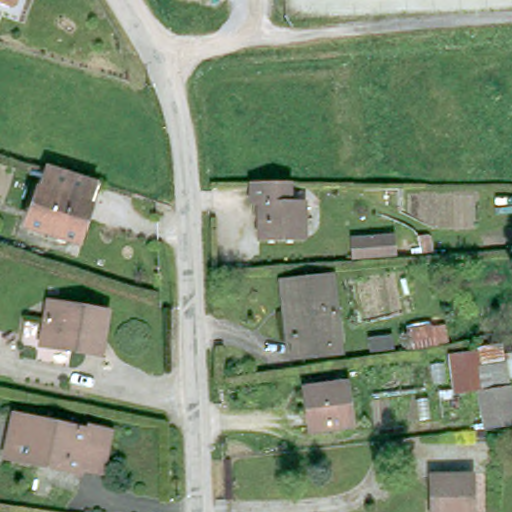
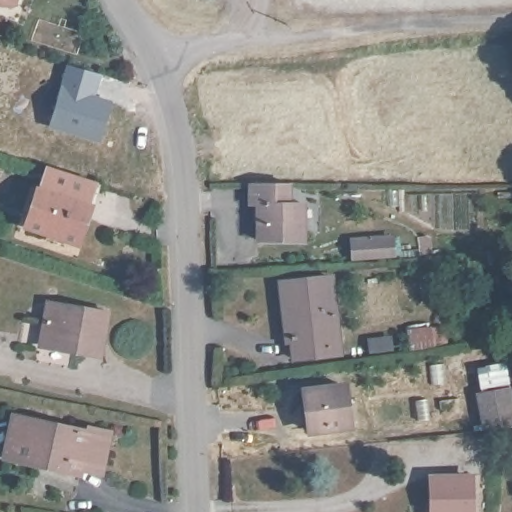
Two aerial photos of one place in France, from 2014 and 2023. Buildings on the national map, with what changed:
unchanged [(15,4),(10,7),(0,4),(0,0),(16,0),(15,4)]
new [(99,140),(50,125),(69,63),(98,73),(92,96),(110,101),(99,140)]
unchanged [(79,252),(61,246),(59,252),(48,249),(50,242),(32,237),(50,177),(98,192),(79,252)]
unchanged [(297,208),(310,208),(310,244),(266,245),(265,208),(258,208),(257,187),(296,187),(297,208)]
unchanged [(395,253),(355,256),(354,236),(394,232),(395,253)]
unchanged [(342,353),(297,358),(295,342),(289,343),(282,281),(334,276),(342,353)]
unchanged [(95,308),(110,311),(104,353),(87,351),(87,348),(45,341),(51,303),(94,311),(95,308)]
unchanged [(410,331),(432,327),(444,326),(447,342),(435,345),(412,348),(410,331)]
unchanged [(393,336),(395,350),(372,352),(370,338),(393,336)]
unchanged [(480,366),(485,390),(480,391),(455,395),(449,356),(503,346),(506,362),(480,366)]
unchanged [(480,366),(506,362),(512,395),(512,423),(485,427),(480,391),(485,390),(480,366)]
unchanged [(350,431),(312,437),(306,395),(346,390),(350,431)]
unchanged [(90,431),(90,427),(112,432),(104,472),(84,469),(82,475),(7,458),(17,415),(90,431)]
unchanged [(437,512),(436,478),(470,477),(471,512),(437,512)]

